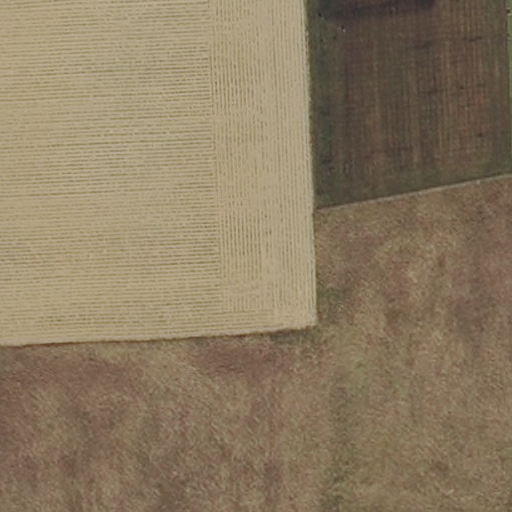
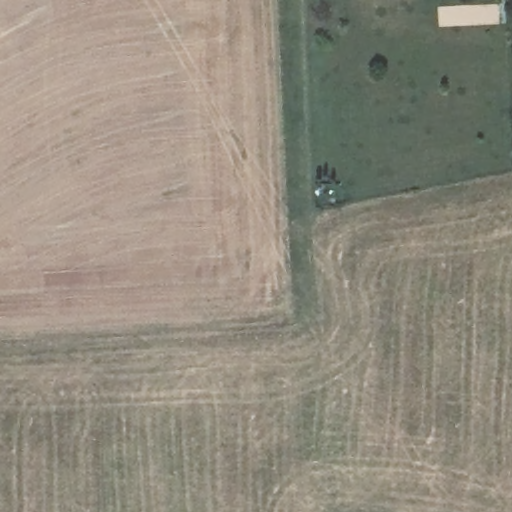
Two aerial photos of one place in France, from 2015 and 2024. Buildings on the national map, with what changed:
[]

